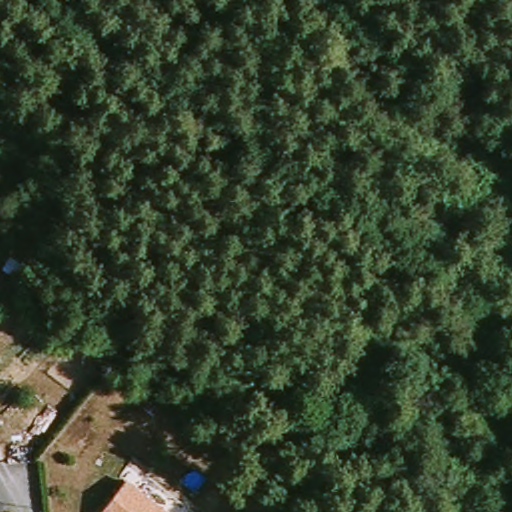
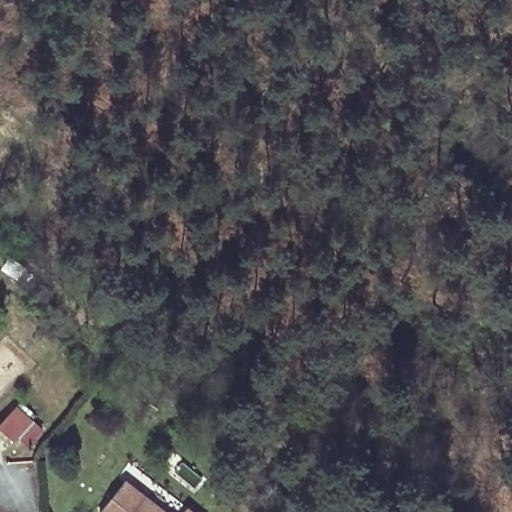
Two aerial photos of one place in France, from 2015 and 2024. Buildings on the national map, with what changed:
new [(32,421),(14,440),(0,428),(0,423),(16,406),(32,421)]
unchanged [(130,478),(170,512),(104,512),(103,512),(130,478)]

